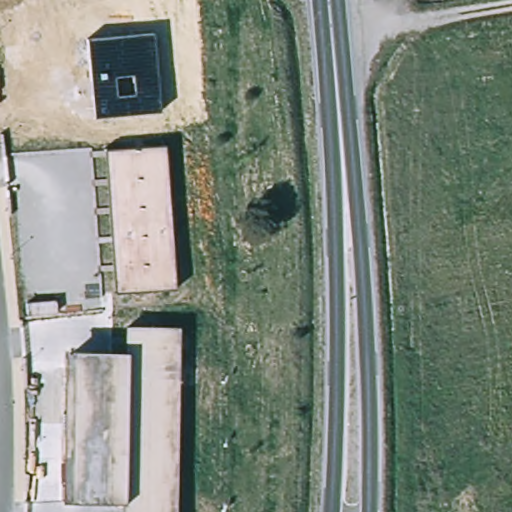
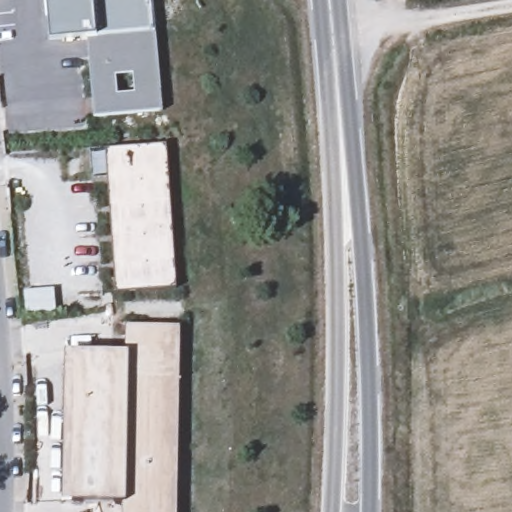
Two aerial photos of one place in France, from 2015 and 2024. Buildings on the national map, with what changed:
new [(87,39),(50,42),(46,0),(149,0),(152,31),(95,38),(87,39)]
unchanged [(93,118),(87,39),(152,31),(159,111),(93,118)]
unchanged [(115,291),(107,150),(165,145),(174,288),(115,291)]
unchanged [(62,501),(65,351),(125,352),(125,326),(178,327),(176,512),(122,512),(123,501),(62,501)]

